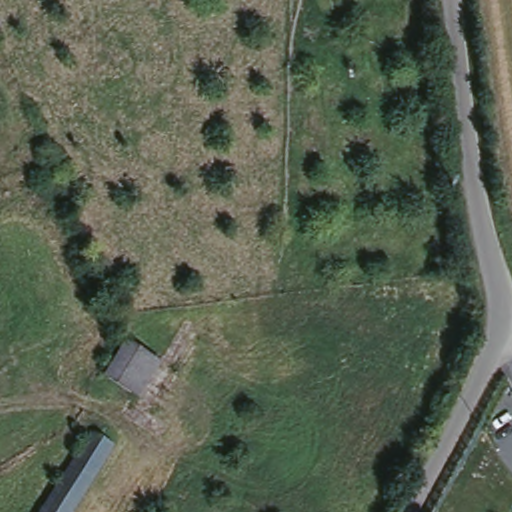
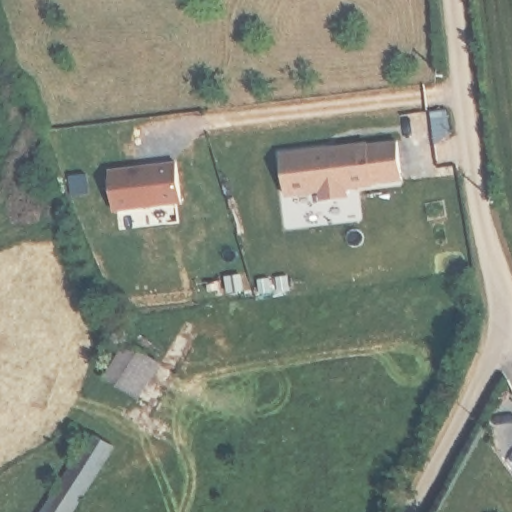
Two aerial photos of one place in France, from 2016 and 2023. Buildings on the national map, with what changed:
new [(368,145),(368,147),(398,144),(402,181),(372,185),(372,186),(345,189),(346,199),(321,202),(320,192),(284,196),(280,155),(368,145)]
new [(174,164),(180,203),(115,214),(107,174),(174,164)]
unchanged [(144,399),(132,393),(105,380),(126,336),(155,350),(165,354),(144,399)]
unchanged [(114,450),(75,512),(43,512),(92,433),(114,450)]

